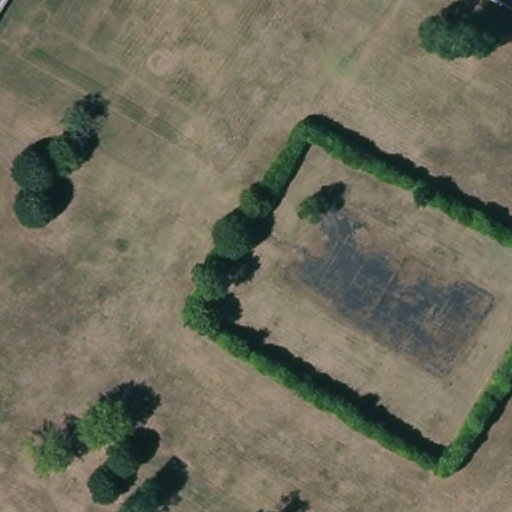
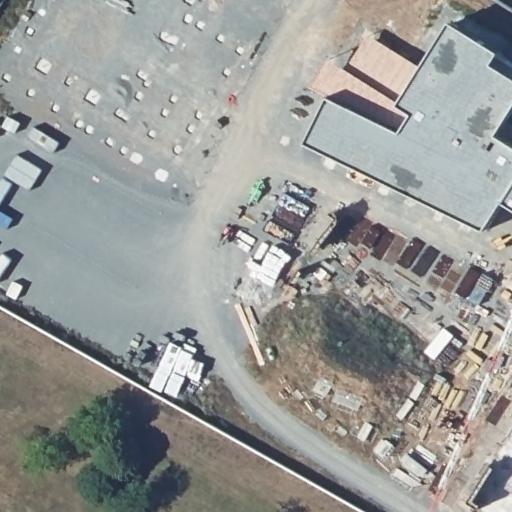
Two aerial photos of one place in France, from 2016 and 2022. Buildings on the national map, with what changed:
new [(492,66),(512,79),(512,109),(494,138),(512,149),(512,209),(508,207),(491,230),(307,141),(331,98),(312,86),(329,59),(347,71),(369,36),(425,72),(453,30),(494,53),(492,66)]
new [(512,432),(512,512),(482,512),(470,505),(512,432)]

